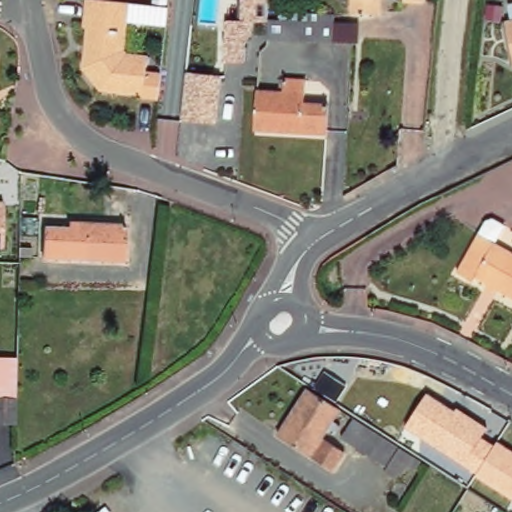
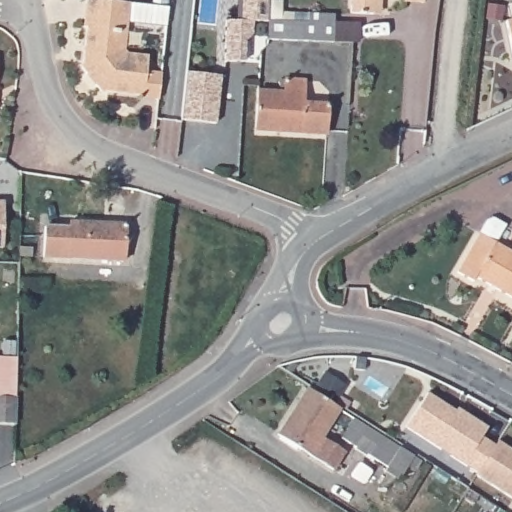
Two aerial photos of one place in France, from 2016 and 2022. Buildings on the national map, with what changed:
unchanged [(125,49),(129,52),(149,54),(148,69),(161,70),(158,98),(142,96),(142,93),(101,89),(83,67),(87,26),(84,26),(87,0),(111,0),(130,2),(125,49)]
unchanged [(256,20),(255,34),(246,40),(244,61),(224,60),(227,20),(239,20),(240,0),(268,0),(267,21),(256,20)]
unchanged [(350,12),(351,0),(380,0),(379,14),(372,13),(350,12)]
unchanged [(403,2),(403,0),(423,0),(423,3),(403,2)]
unchanged [(282,13),(307,14),(334,15),(334,24),(333,43),(284,40),(266,39),(267,21),(282,21),(282,13)]
unchanged [(512,67),(504,24),(512,22),(512,67)]
unchanged [(217,123),(182,119),(188,72),(222,75),(217,123)]
unchanged [(279,91),(283,91),(284,78),(304,79),(303,101),(328,104),(326,135),(254,130),(257,90),(279,91)]
unchanged [(3,252),(0,251),(0,202),(5,202),(3,252)]
unchanged [(68,227),(68,221),(126,224),(123,261),(43,257),(44,227),(68,227)]
unchanged [(512,253),(512,298),(475,278),(472,281),(456,272),(477,234),(512,253)]
unchanged [(13,397),(15,397),(14,424),(0,424),(0,357),(13,358),(13,397)]
unchanged [(334,411),(328,422),(336,427),(330,435),(322,430),(317,439),(338,454),(328,469),(274,434),(302,391),(334,411)]
unchanged [(427,394),(457,413),(459,409),(489,428),(482,437),(495,445),(497,442),(512,451),(512,497),(405,428),(427,394)]
unchanged [(411,472),(403,467),(398,477),(395,474),(392,479),(380,472),(382,468),(363,456),(361,458),(352,474),(338,465),(347,449),(348,449),(350,446),(337,438),(349,419),(396,448),(395,449),(409,457),(417,462),(411,472)]

